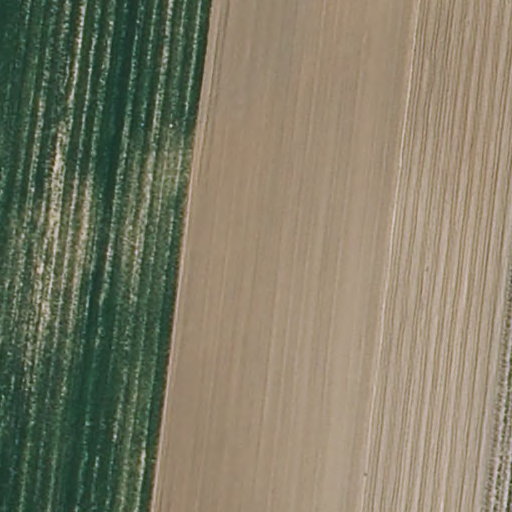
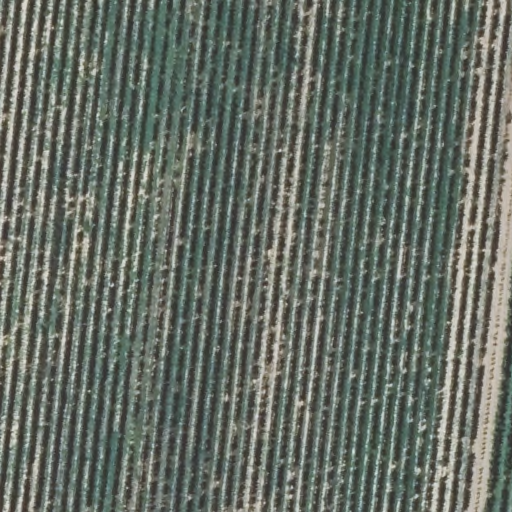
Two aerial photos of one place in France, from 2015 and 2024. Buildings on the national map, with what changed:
[]

